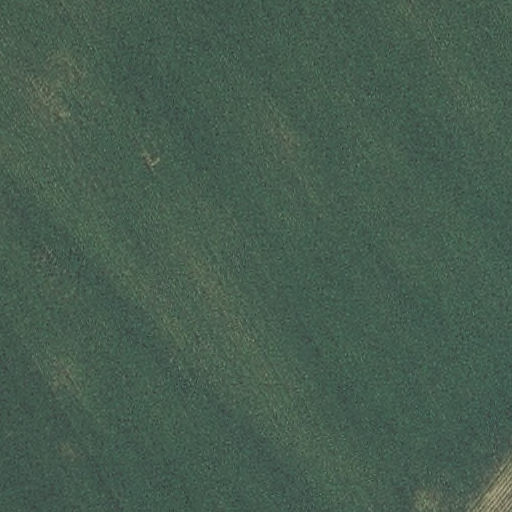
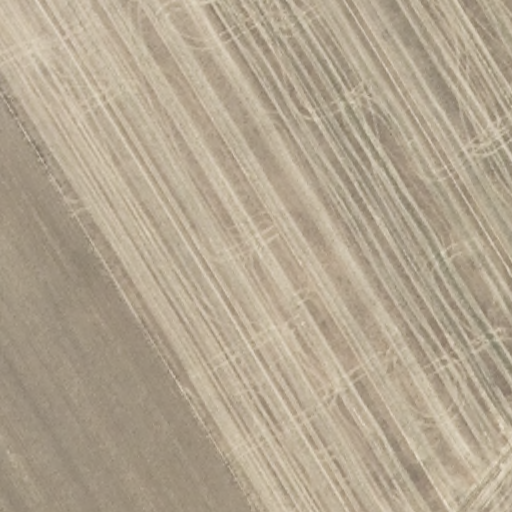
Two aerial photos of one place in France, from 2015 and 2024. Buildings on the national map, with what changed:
[]

